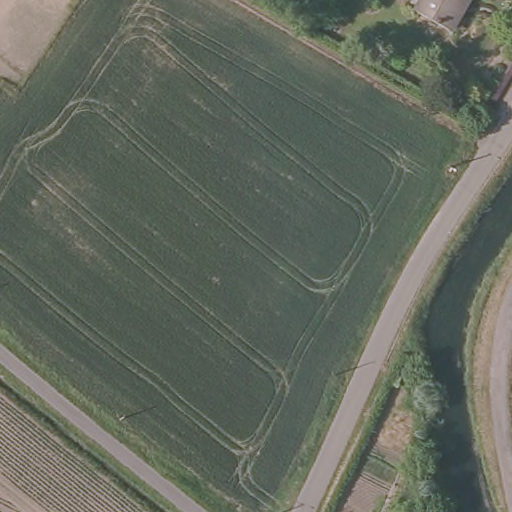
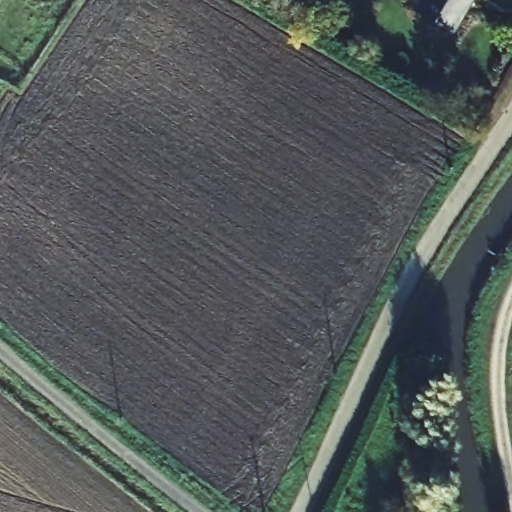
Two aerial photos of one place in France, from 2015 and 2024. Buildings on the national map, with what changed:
unchanged [(426,0),(474,0),(463,18),(460,16),(445,41),(414,20),(426,0)]

